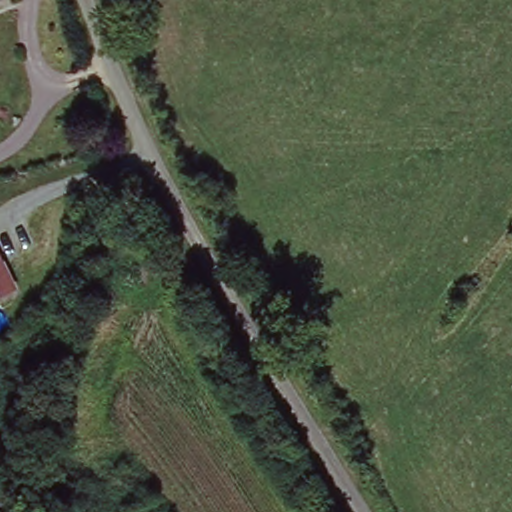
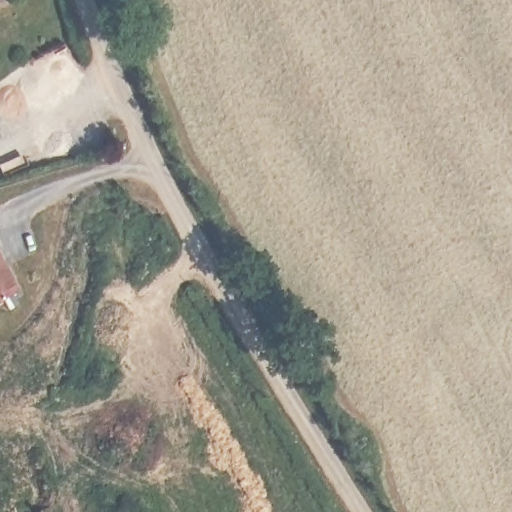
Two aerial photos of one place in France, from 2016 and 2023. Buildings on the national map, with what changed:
unchanged [(20,293),(0,302),(0,249),(20,293)]

